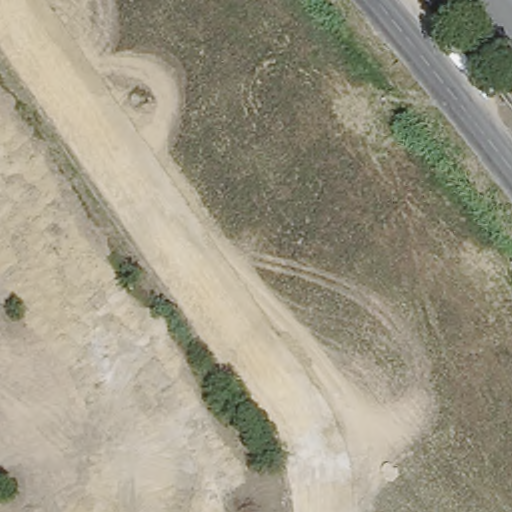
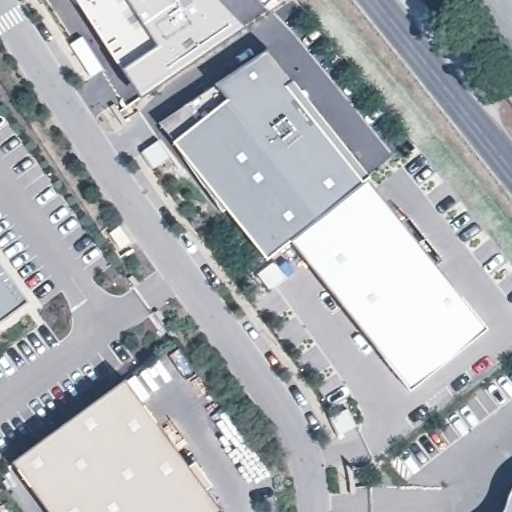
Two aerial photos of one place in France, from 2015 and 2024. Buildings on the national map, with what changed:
new [(245,26),(213,50),(140,96),(72,0),(221,0),(245,26)]
new [(218,106),(205,90),(265,42),(292,75),(284,80),(364,181),(267,259),(173,140),(218,106)]
new [(86,57),(99,49),(110,65),(96,74),(86,57)]
new [(146,149),(159,140),(170,156),(157,165),(146,149)]
new [(412,387),(294,239),(368,180),(487,326),(412,387)]
new [(113,231),(121,225),(132,240),(124,247),(113,231)]
new [(29,300),(0,321),(0,260),(29,300)]
new [(190,465),(196,460),(212,483),(206,488),(222,510),(220,512),(93,512),(89,506),(81,512),(51,512),(13,458),(127,377),(190,465)]
new [(508,499),(510,490),(512,487),(512,512),(504,512),(505,510),(508,499)]
new [(93,512),(81,512),(89,506),(93,512)]

